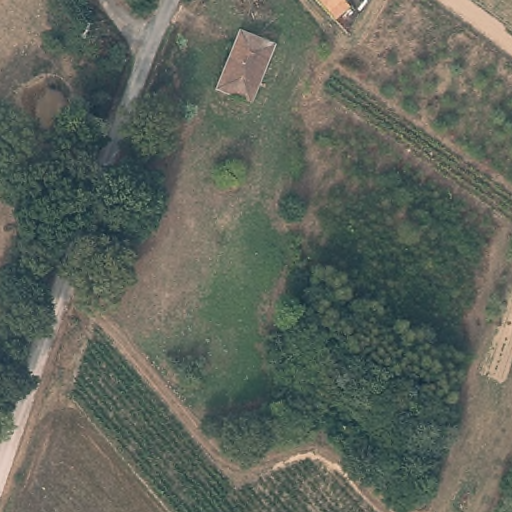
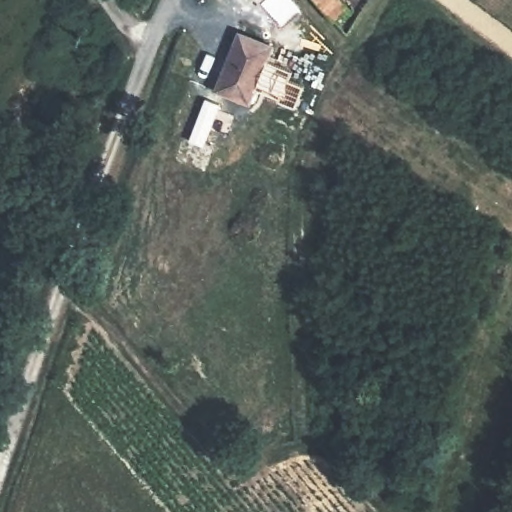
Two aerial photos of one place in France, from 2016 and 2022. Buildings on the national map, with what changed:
unchanged [(348,6),(331,21),(313,0),(343,0),(348,6)]
unchanged [(220,66),(240,28),(273,45),(247,101),(212,84),(220,66)]

